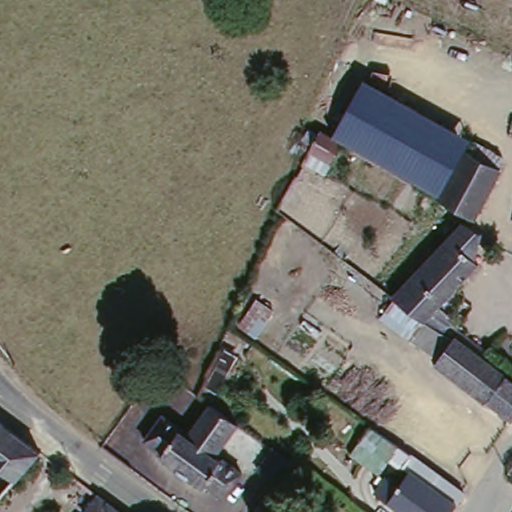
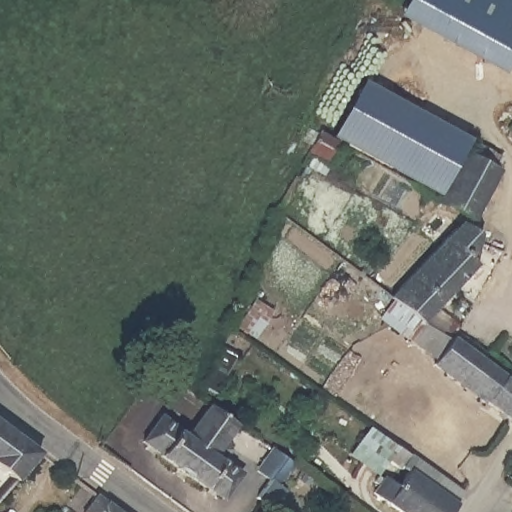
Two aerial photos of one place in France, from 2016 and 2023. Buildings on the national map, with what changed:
new [(502,76),(398,19),(409,0),(512,0),(512,60),(502,76)]
unchanged [(341,142),(332,137),(367,76),(474,138),(469,146),(465,143),(438,193),(341,142)]
unchanged [(317,134),(319,130),(341,142),(330,160),(309,149),(311,144),(302,139),(309,128),(317,134)]
unchanged [(465,143),(469,146),(474,138),(501,154),(497,163),(500,164),(473,216),(438,193),(465,143)]
unchanged [(461,218),(482,229),(475,256),(478,260),(423,316),(414,310),(401,301),(389,292),(461,218)]
unchanged [(467,384),(464,387),(430,362),(434,355),(400,330),(414,310),(423,316),(442,330),(448,334),(455,325),(488,347),(481,357),(498,369),(512,379),(512,413),(510,415),(467,384)]
unchanged [(238,425),(215,453),(243,474),(221,499),(174,463),(160,453),(144,440),(162,416),(178,427),(186,433),(209,403),(238,425)]
unchanged [(0,491),(0,417),(38,447),(0,491)]
unchanged [(382,474),(395,483),(407,467),(400,461),(395,466),(384,457),(375,466),(350,448),(369,422),(464,489),(448,512),(409,512),(375,487),(382,474)]
unchanged [(264,502),(256,496),(267,480),(256,472),(272,450),(292,465),(264,502)]
unchanged [(88,512),(83,508),(97,491),(125,512),(88,512)]

